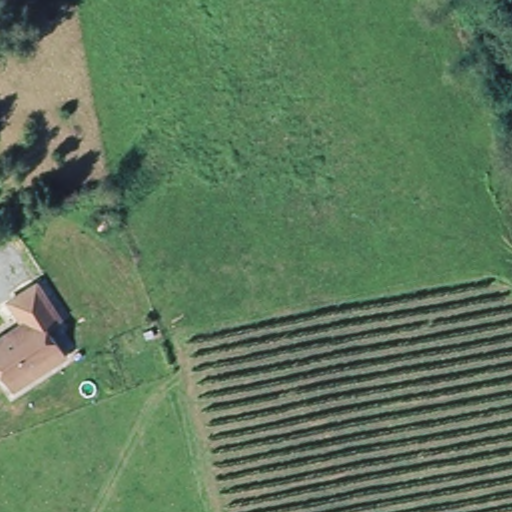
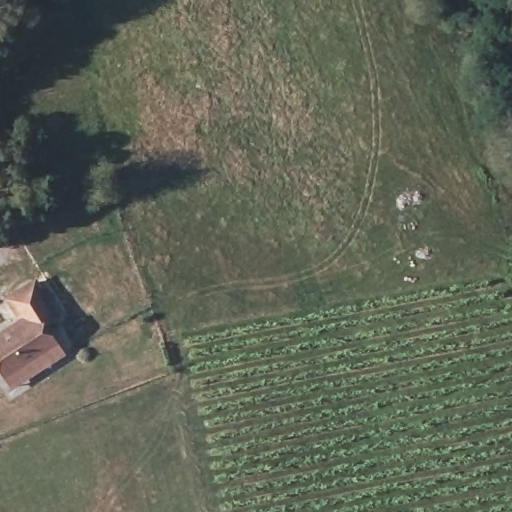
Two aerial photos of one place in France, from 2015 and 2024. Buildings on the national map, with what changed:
unchanged [(0,381),(0,332),(29,323),(20,297),(51,287),(63,323),(46,328),(56,363),(36,370),(0,381)]

